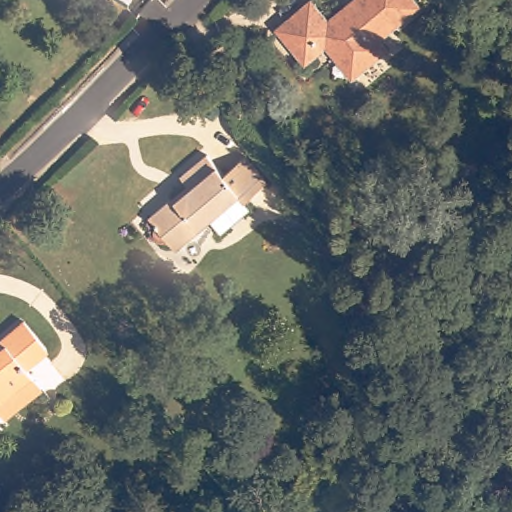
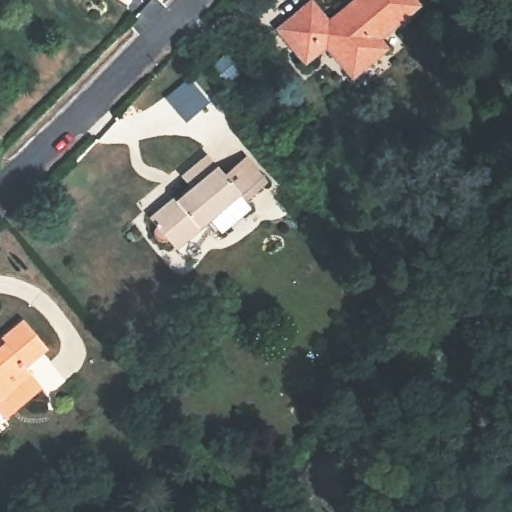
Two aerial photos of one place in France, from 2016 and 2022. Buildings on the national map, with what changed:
unchanged [(377,61),(354,79),(327,49),(323,52),(304,68),(290,51),(274,34),(296,14),(305,7),(324,27),(354,0),(410,0),(416,6),(376,41),(387,54),(377,61)]
unchanged [(227,226),(219,217),(179,251),(171,244),(166,245),(160,246),(156,242),(155,234),(159,229),(152,222),(191,188),(184,179),(209,157),(225,176),(247,157),(269,183),(245,204),(248,207),(227,226)]
unchanged [(0,349),(5,345),(3,341),(26,320),(56,356),(32,376),(49,397),(33,410),(9,429),(0,418),(0,349)]

